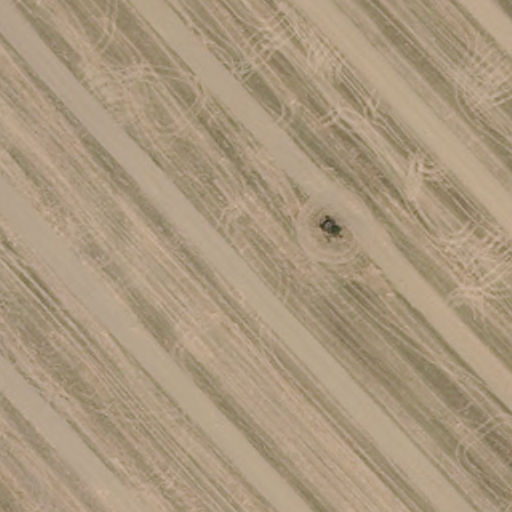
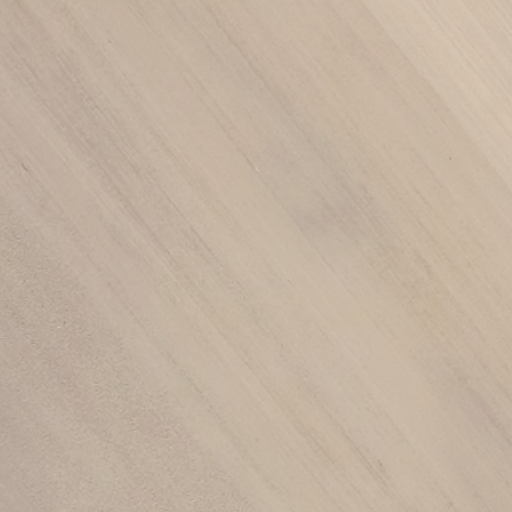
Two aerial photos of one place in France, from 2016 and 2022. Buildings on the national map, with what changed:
[]

